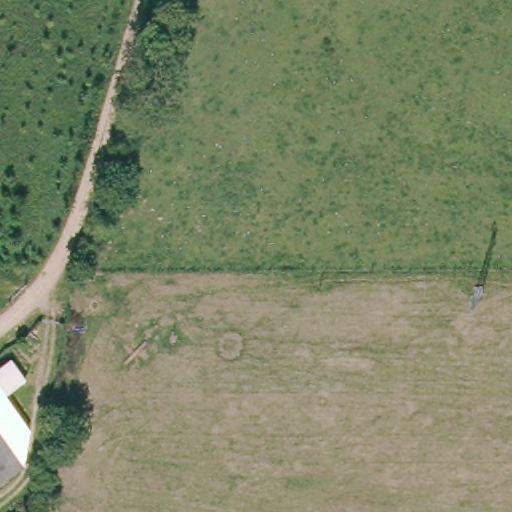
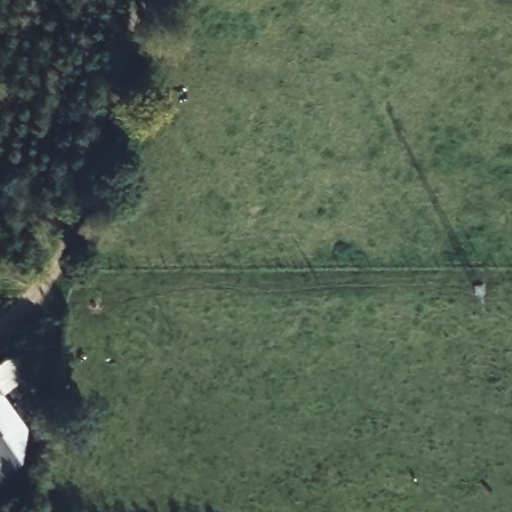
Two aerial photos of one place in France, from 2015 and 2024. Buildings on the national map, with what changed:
unchanged [(0,428),(0,383),(28,427),(23,465),(0,428)]
unchanged [(0,480),(0,428),(23,465),(0,480)]

